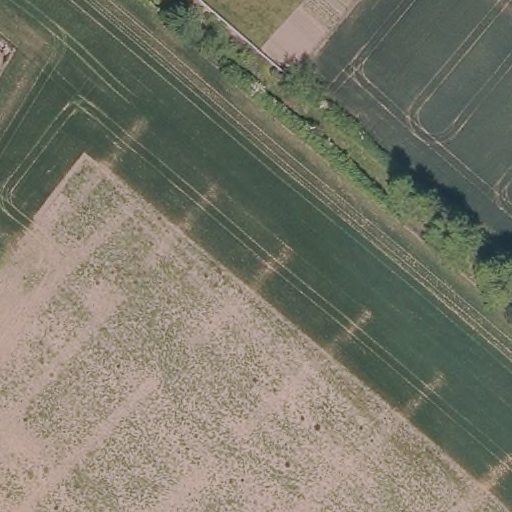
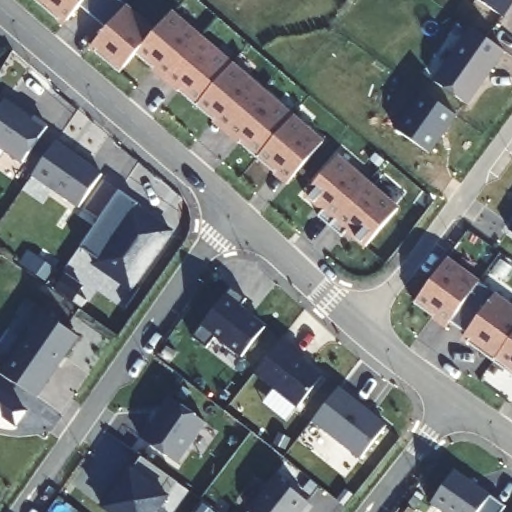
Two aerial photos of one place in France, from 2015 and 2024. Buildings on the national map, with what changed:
new [(257,156),(240,142),(250,130),(225,107),(215,120),(179,89),(190,77),(166,54),(154,67),(135,52),(120,69),(95,49),(100,42),(96,39),(107,26),(80,2),(67,15),(62,11),(59,16),(39,0),(123,0),(157,27),(172,11),(250,78),(324,140),(287,184),(257,156)]
new [(480,0),(512,0),(512,6),(504,17),(480,0)]
new [(470,105),(433,80),(470,27),(507,52),(470,105)]
new [(397,130),(422,93),(457,116),(431,154),(397,130)]
new [(23,162),(0,147),(0,105),(6,96),(49,125),(23,162)]
new [(79,206),(34,173),(57,139),(104,171),(79,206)]
new [(365,245),(347,229),(343,235),(319,215),(324,209),(305,194),(338,154),(400,206),(365,245)]
new [(131,289),(97,263),(100,259),(80,247),(122,191),(173,229),(131,289)]
new [(512,227),(512,233),(510,231),(512,227)]
new [(467,331),(452,320),(447,326),(414,303),(449,255),(481,279),(470,295),(485,306),(496,290),(512,302),(512,374),(462,338),(467,331)]
new [(67,272),(85,285),(80,292),(89,297),(84,306),(57,286),(67,272)]
new [(241,357),(215,336),(207,346),(192,335),(232,287),(247,298),(241,306),(266,325),(241,357)]
new [(76,336),(35,397),(0,373),(45,313),(76,336)]
new [(297,406),(256,371),(284,336),(307,354),(304,358),(323,374),(297,406)]
new [(338,386),(386,425),(360,457),(312,419),(338,386)]
new [(21,409),(13,422),(0,414),(0,394),(21,409)]
new [(203,420),(177,460),(141,436),(168,397),(203,420)]
new [(493,512),(447,512),(430,501),(455,468),(500,502),(493,512)]
new [(167,496),(156,512),(113,512),(102,505),(127,470),(167,496)]
new [(308,500),(298,512),(252,512),(250,511),(277,477),(308,500)]

